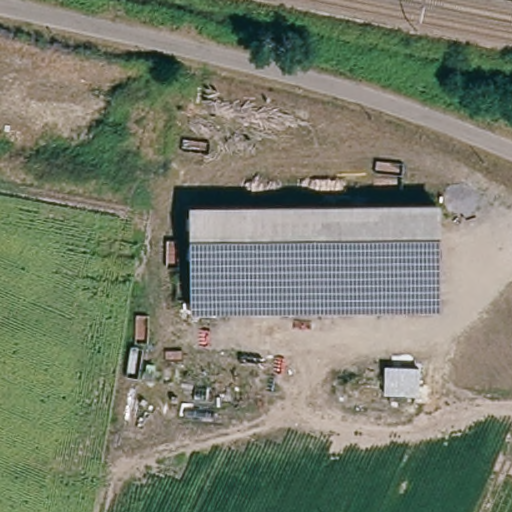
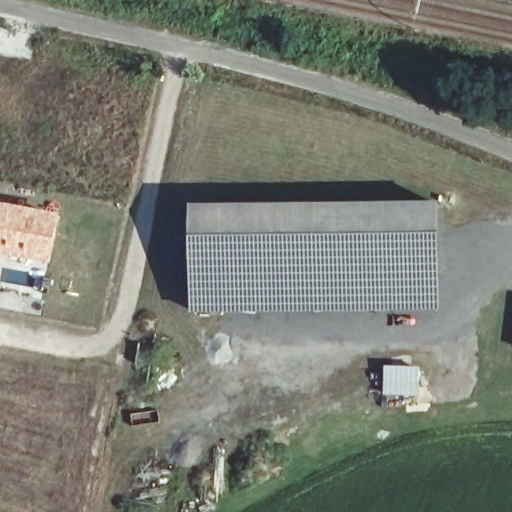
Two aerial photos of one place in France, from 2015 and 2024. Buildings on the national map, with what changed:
new [(51,264),(11,257),(0,254),(0,202),(60,213),(51,264)]
unchanged [(195,313),(194,208),(436,205),(437,310),(195,313)]

